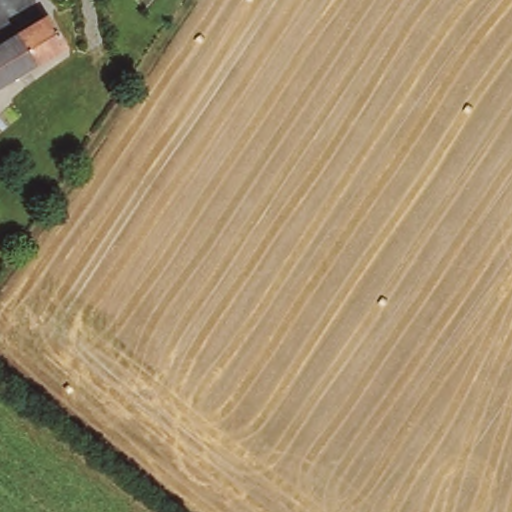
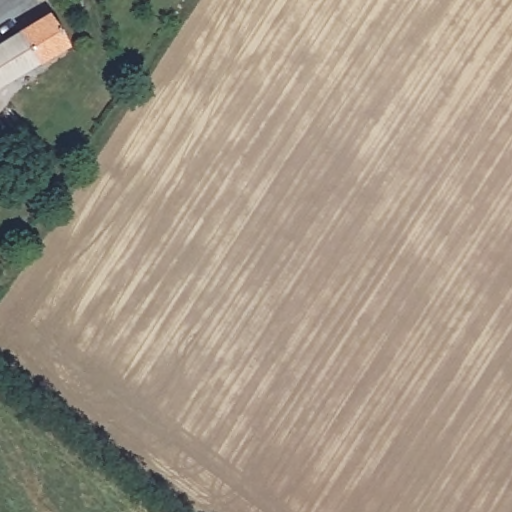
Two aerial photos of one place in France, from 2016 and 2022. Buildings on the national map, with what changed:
unchanged [(79,38),(0,89),(0,48),(61,11),(79,38)]

